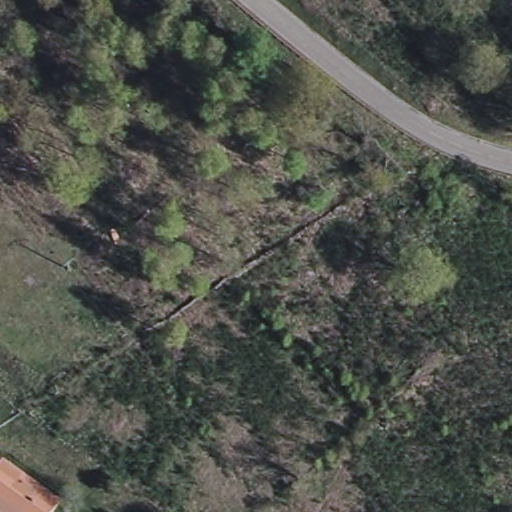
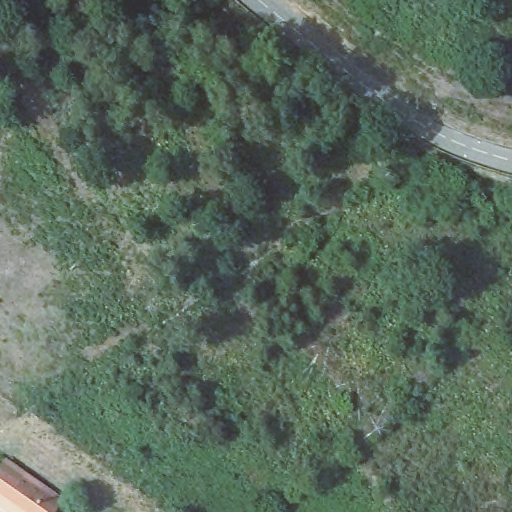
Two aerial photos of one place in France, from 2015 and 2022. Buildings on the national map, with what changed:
unchanged [(0,461),(5,455),(36,478),(12,512),(6,512),(0,507),(0,461)]
unchanged [(62,497),(52,512),(12,512),(36,478),(62,497)]

